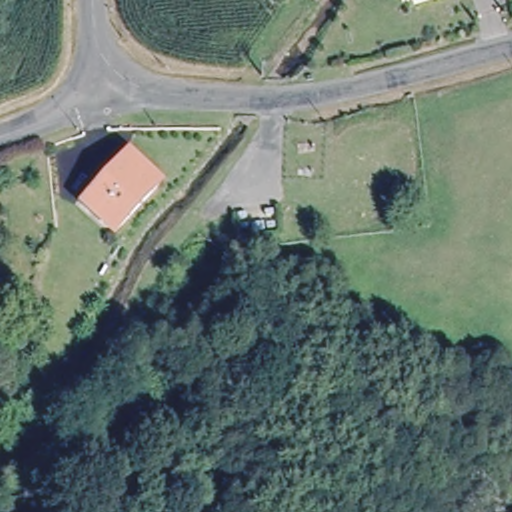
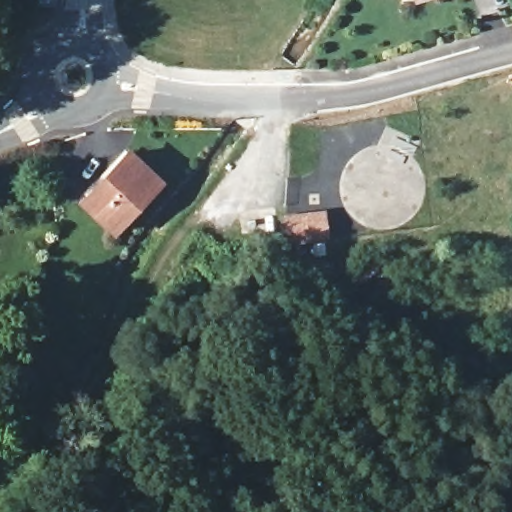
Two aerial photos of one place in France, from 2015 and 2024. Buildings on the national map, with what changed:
unchanged [(115,227),(84,198),(130,149),(161,178),(115,227)]
new [(329,239),(285,245),(282,215),(325,209),(329,239)]

